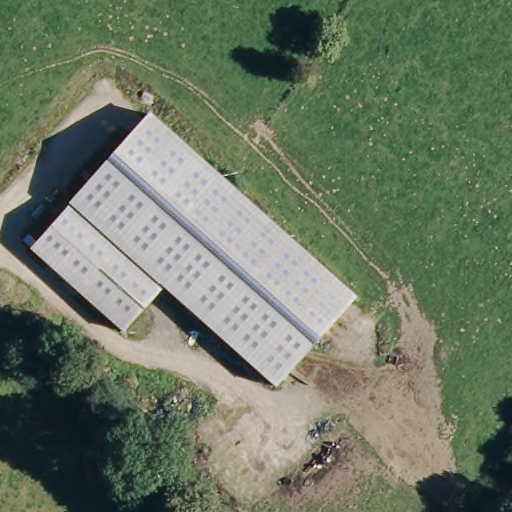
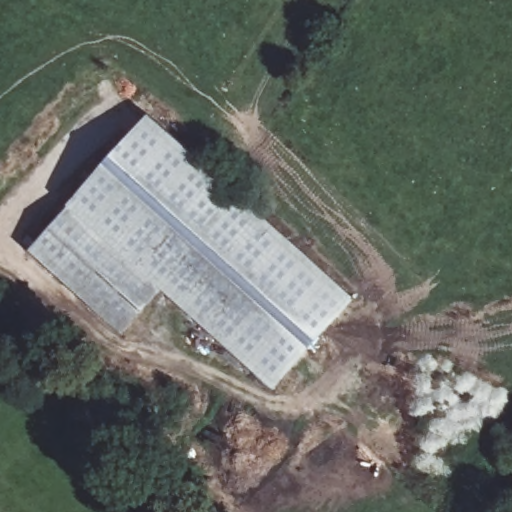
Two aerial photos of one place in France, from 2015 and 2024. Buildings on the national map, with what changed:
unchanged [(354,296),(273,386),(162,286),(129,323),(121,331),(30,250),(150,115),(224,179),(223,180),(354,296)]

